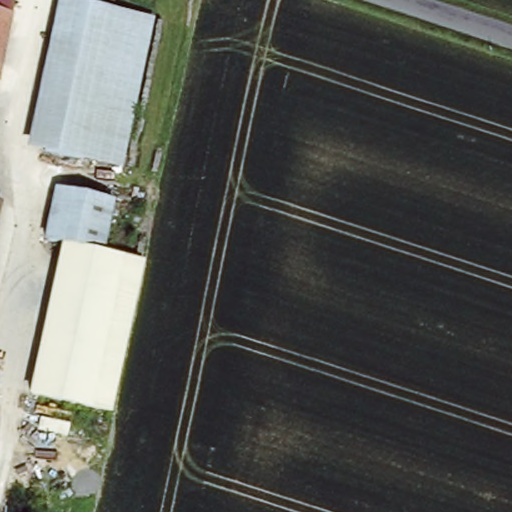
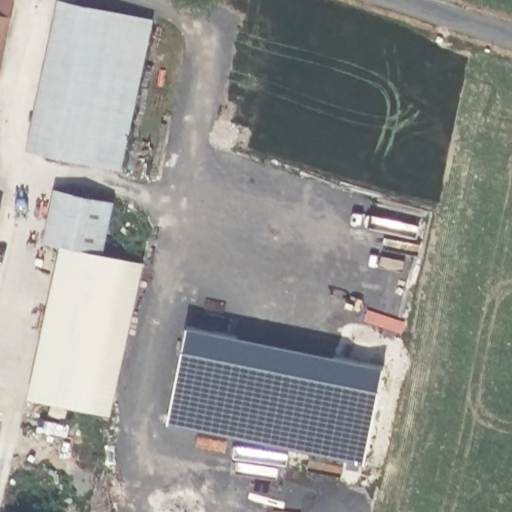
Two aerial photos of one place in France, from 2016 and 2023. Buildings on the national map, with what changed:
unchanged [(19,0),(15,21),(0,18),(0,0),(19,0)]
unchanged [(25,150),(57,1),(153,21),(120,171),(25,150)]
unchanged [(15,21),(0,89),(0,18),(15,21)]
unchanged [(45,243),(57,190),(117,203),(105,255),(63,247),(45,243)]
unchanged [(0,217),(0,204),(4,205),(0,217)]
unchanged [(105,255),(142,263),(147,264),(145,270),(140,295),(115,417),(90,412),(32,400),(63,247),(105,255)]
new [(192,326),(387,366),(367,462),(172,422),(192,326)]

